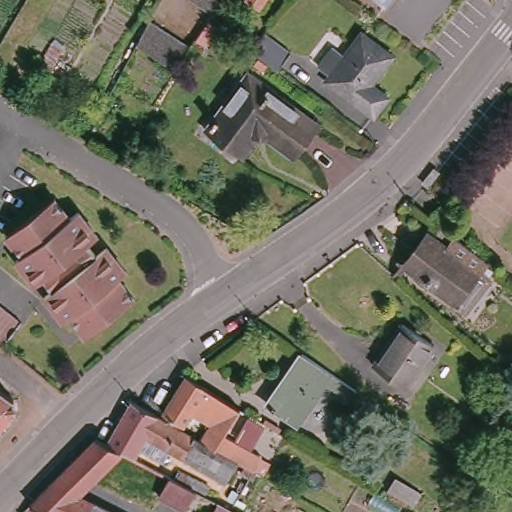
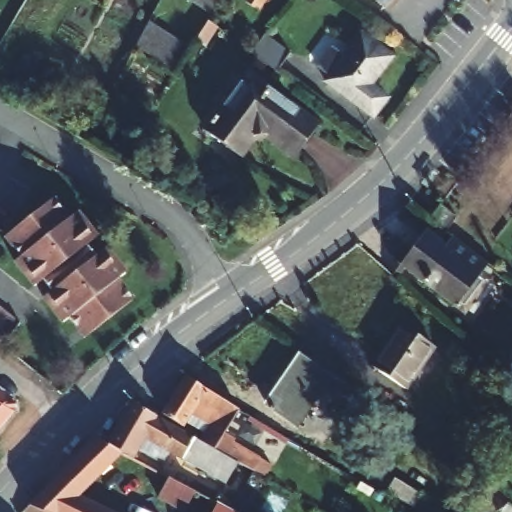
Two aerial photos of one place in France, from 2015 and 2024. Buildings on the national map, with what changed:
unchanged [(204,1),(204,0),(222,0),(216,9),(204,1)]
unchanged [(266,0),(258,11),(243,0),(266,0)]
unchanged [(156,23),(191,46),(188,49),(176,69),(153,54),(141,46),(156,23)]
unchanged [(265,52),(259,47),(258,47),(267,36),(273,29),(293,45),(279,62),(265,52)]
unchanged [(375,85),(392,98),(376,117),(330,81),(334,76),(324,67),(338,47),(349,57),(366,37),(395,61),(375,85)]
unchanged [(303,164),(273,141),(260,142),(246,161),(215,137),(258,83),(326,135),(303,164)]
unchanged [(70,222),(78,215),(98,240),(88,247),(96,259),(106,251),(126,276),(118,282),(134,302),(85,341),(70,321),(64,326),(44,301),(53,294),(43,283),(35,289),(16,264),(22,260),(6,240),(54,202),(70,222)]
unchanged [(416,217),(427,204),(444,216),(433,231),(416,217)]
unchanged [(482,280),(457,311),(397,263),(423,233),(435,243),(440,236),(479,265),(473,272),(482,280)]
unchanged [(1,344),(0,343),(0,307),(18,322),(1,344)]
unchanged [(374,368),(403,326),(435,348),(406,390),(374,368)]
unchanged [(329,377),(298,420),(272,402),(289,378),(286,376),(304,348),(359,386),(354,395),(329,377)]
unchanged [(246,472),(248,466),(240,461),(229,455),(218,448),(211,445),(204,441),(214,423),(194,412),(186,425),(164,412),(189,376),(243,407),(226,435),(264,456),(256,470),(255,470),(252,475),(246,472)]
unchanged [(24,412),(0,438),(0,384),(22,400),(24,412)]
unchanged [(133,401),(181,427),(204,441),(211,445),(218,448),(229,455),(240,461),(229,481),(161,444),(154,455),(140,447),(135,456),(124,451),(108,442),(133,401)]
unchanged [(97,436),(108,442),(124,451),(82,495),(53,482),(97,436)]
unchanged [(395,476),(421,491),(412,504),(388,488),(395,476)]
unchanged [(198,495),(188,512),(183,512),(158,500),(169,480),(198,495)]
unchanged [(82,495),(117,512),(46,512),(31,505),(53,482),(82,495)]
unchanged [(219,501),(241,512),(213,512),(219,501)]

